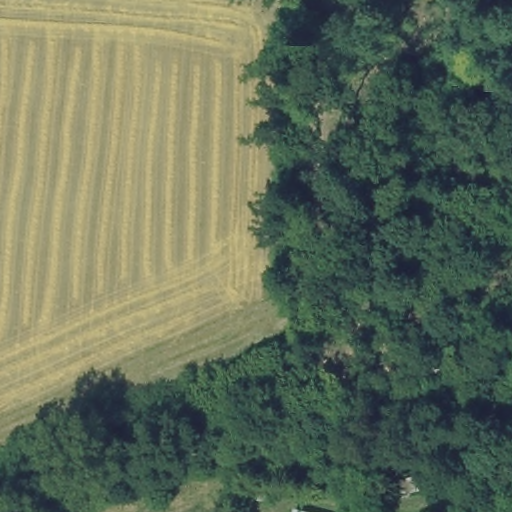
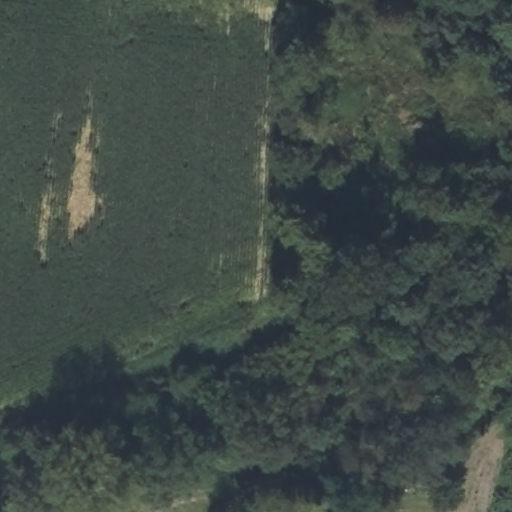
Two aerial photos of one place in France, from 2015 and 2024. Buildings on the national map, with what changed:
unchanged [(294,512),(295,511),(296,512),(294,512)]

